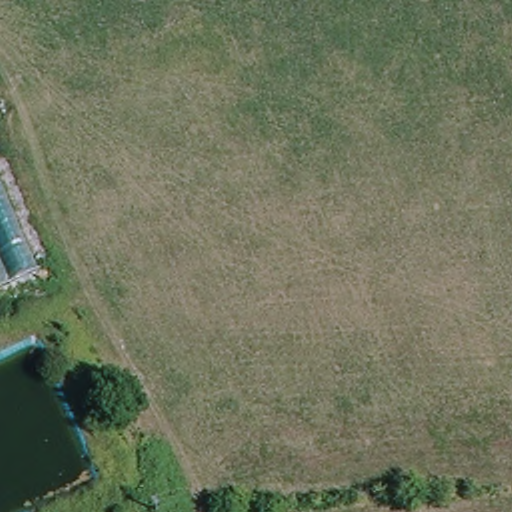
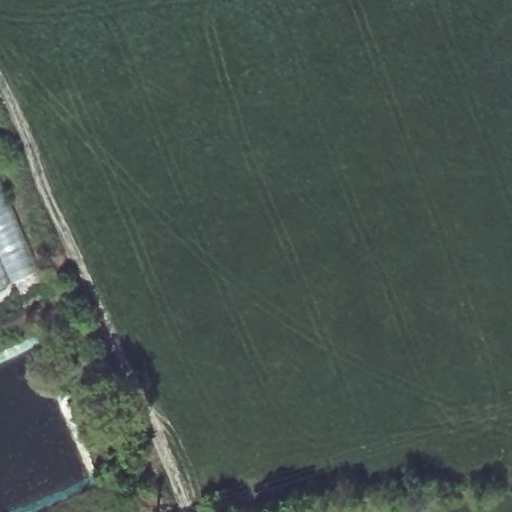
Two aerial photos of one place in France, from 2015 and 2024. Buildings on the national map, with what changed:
unchanged [(0,181),(39,272),(0,290),(0,181)]

